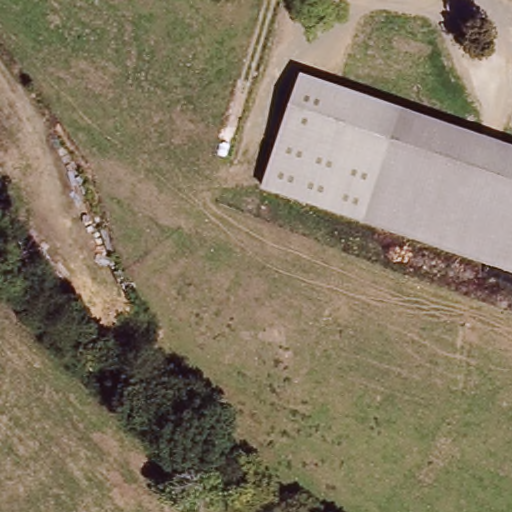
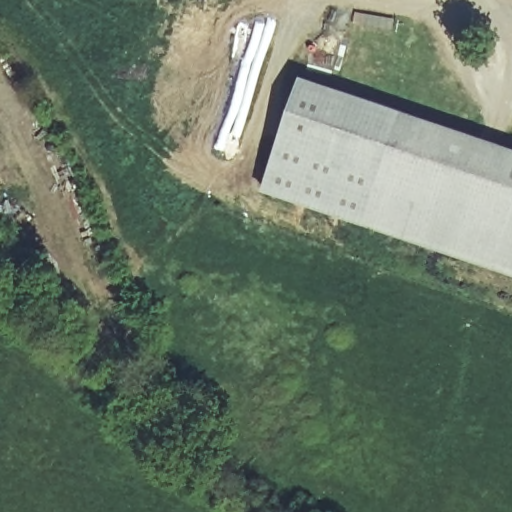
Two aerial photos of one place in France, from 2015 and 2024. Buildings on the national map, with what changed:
unchanged [(512,153),(512,278),(261,180),(304,72),(512,153)]

